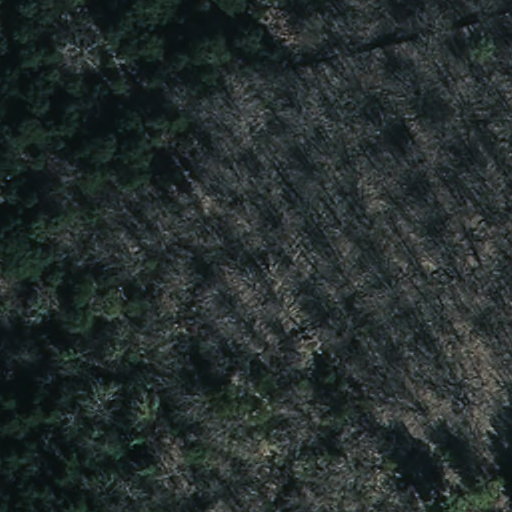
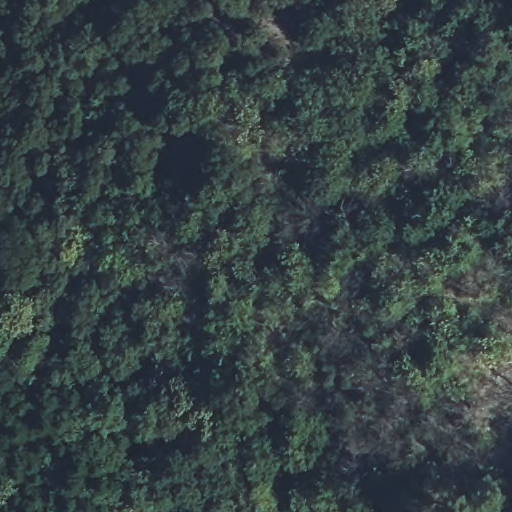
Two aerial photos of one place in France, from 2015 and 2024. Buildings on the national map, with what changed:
[]

